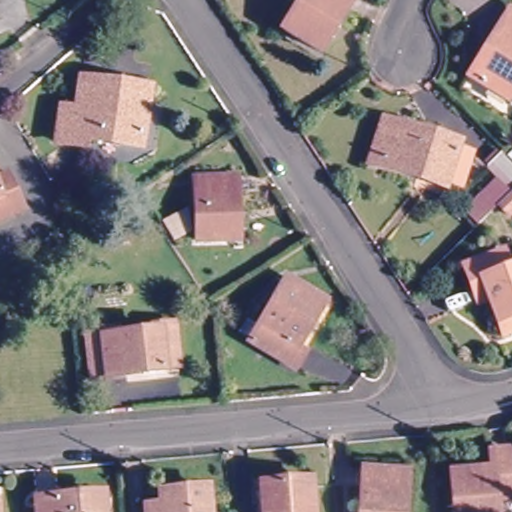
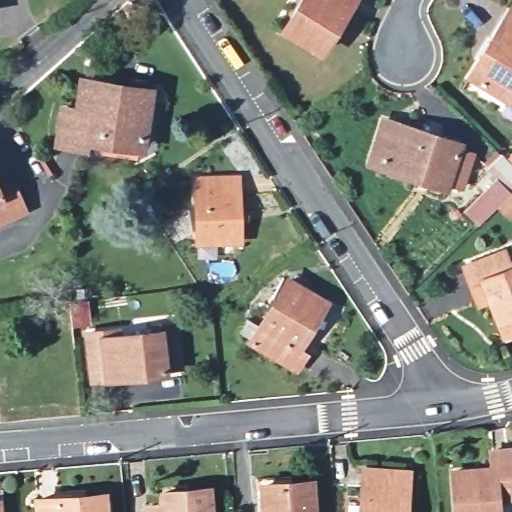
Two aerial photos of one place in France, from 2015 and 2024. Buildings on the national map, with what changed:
unchanged [(285,30),(303,0),(352,0),(320,51),(285,30)]
unchanged [(502,96),(465,72),(477,52),(485,40),(505,6),(512,11),(512,98),(504,93),(502,96)]
unchanged [(145,142),(140,141),(92,134),(90,141),(62,138),(67,105),(82,107),(87,77),(105,80),(153,87),(145,142)]
unchanged [(443,183),(441,188),(365,163),(378,120),(455,145),(454,150),(469,155),(458,188),(443,183)]
unchanged [(497,211),(480,225),(470,215),(477,206),(476,193),(487,184),(485,180),(491,172),(485,165),(500,153),(512,165),(512,217),(508,221),(497,211)]
unchanged [(239,235),(197,236),(195,174),(236,173),(239,235)]
unchanged [(13,179),(30,217),(1,229),(0,227),(0,185),(13,179)]
unchanged [(490,296),(479,300),(471,281),(465,262),(503,247),(510,265),(512,264),(512,329),(505,332),(490,296)]
unchanged [(252,319),(265,327),(293,281),(330,303),(301,350),(308,354),(300,369),(256,343),(257,340),(245,332),(252,319)]
unchanged [(84,317),(73,317),(72,305),(83,305),(84,317)]
unchanged [(180,372),(106,381),(101,335),(125,332),(126,338),(175,332),(180,372)]
unchanged [(493,512),(452,512),(448,472),(488,468),(486,452),(503,450),(507,487),(491,488),(493,512)]
unchanged [(406,512),(361,512),(363,470),(409,473),(406,512)]
unchanged [(262,486),(310,482),(313,512),(265,512),(262,486)]
unchanged [(205,512),(142,512),(141,508),(158,506),(157,494),(202,490),(205,512)]
unchanged [(105,512),(39,512),(39,501),(104,496),(105,512)]
unchanged [(9,512),(0,512),(0,504),(9,503),(9,512)]

